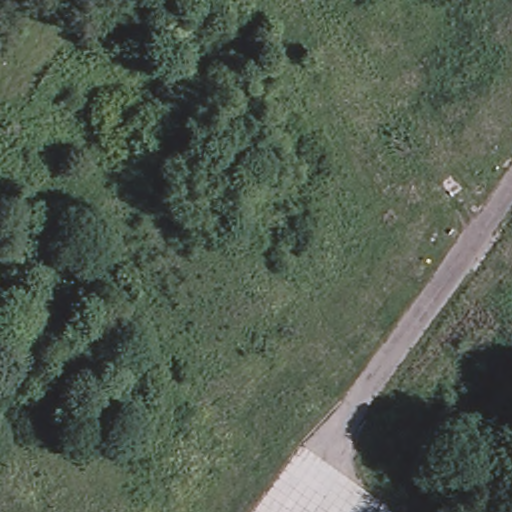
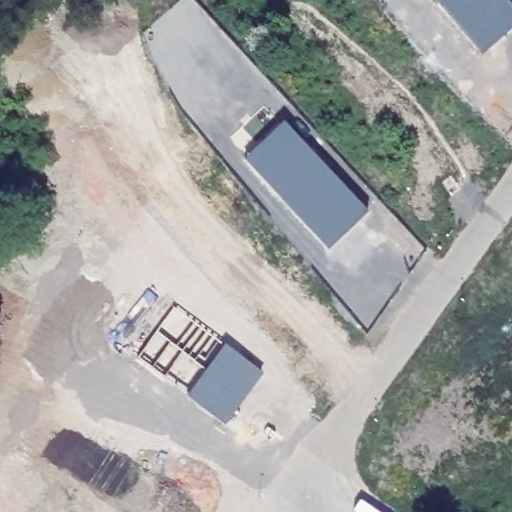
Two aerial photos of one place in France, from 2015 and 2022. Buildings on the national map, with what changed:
new [(512,4),(512,24),(482,50),(438,0),(509,0),(512,4)]
new [(367,214),(327,250),(241,161),(282,123),(367,214)]
new [(172,305),(262,373),(225,420),(137,356),(172,305)]

